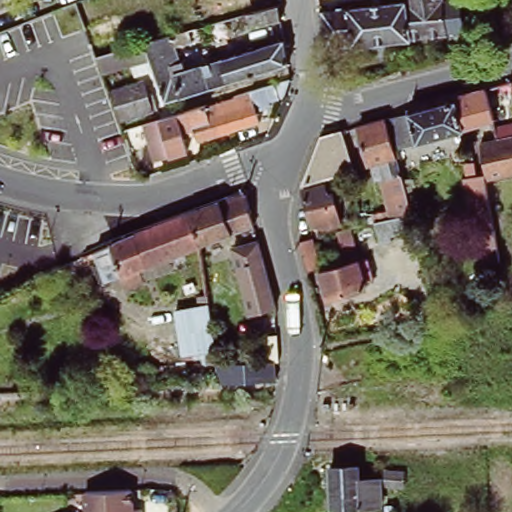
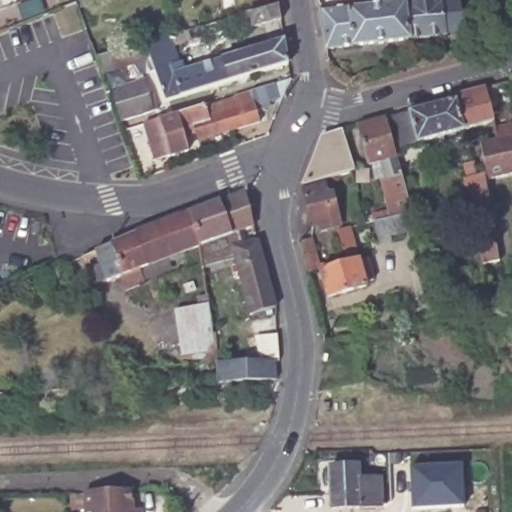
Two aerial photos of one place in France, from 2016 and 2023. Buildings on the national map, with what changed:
unchanged [(442,40),(322,54),(315,14),(346,11),(347,13),(400,7),(399,0),(436,0),(442,40)]
unchanged [(287,20),(256,28),(252,13),(283,4),(287,20)]
unchanged [(144,64),(149,62),(142,43),(195,27),(198,36),(180,41),(183,54),(187,52),(188,59),(192,57),(195,67),(285,40),(288,64),(164,102),(152,70),(147,72),(144,64)]
unchanged [(152,109),(122,119),(112,89),(142,80),(152,109)]
unchanged [(452,96),(485,87),(493,122),(462,131),(453,99),(452,96)]
unchanged [(217,107),(217,105),(267,90),(272,103),(250,110),(255,127),(225,136),(217,107)]
unchanged [(462,131),(397,149),(390,117),(453,99),(462,131)]
unchanged [(195,145),(190,132),(179,136),(182,147),(148,159),(138,129),(197,111),(198,114),(217,107),(225,136),(195,145)]
unchanged [(395,195),(385,197),(380,177),(382,177),(377,161),(368,163),(357,126),(384,119),(398,169),(410,208),(415,229),(390,235),(392,242),(379,245),(372,219),(374,219),(372,212),(391,207),(392,213),(400,211),(395,195)]
unchanged [(484,177),(483,172),(477,140),(491,137),(488,126),(512,122),(512,171),(484,177)]
unchanged [(304,183),(322,136),(342,130),(353,170),(350,171),(304,183)]
unchanged [(487,263),(479,231),(472,232),(460,179),(464,178),(461,165),(470,162),(473,176),(482,174),(500,260),(487,263)]
demolished [(353,181),(368,176),(376,206),(361,210),(353,181)]
unchanged [(323,184),(327,195),(332,193),(340,222),(336,226),(324,230),(322,223),(313,226),(302,191),(323,184)]
unchanged [(240,193),(250,226),(195,246),(185,214),(240,193)]
unchanged [(195,246),(120,274),(110,244),(185,214),(195,246)]
unchanged [(362,215),(369,214),(370,220),(364,222),(362,215)]
unchanged [(338,229),(349,226),(366,287),(327,298),(318,267),(347,260),(338,229)]
unchanged [(299,242),(310,239),(318,267),(307,271),(299,242)]
unchanged [(282,305),(258,311),(241,247),(264,240),(282,305)]
unchanged [(215,360),(182,362),(173,310),(209,306),(215,360)]
unchanged [(222,381),(221,362),(252,362),(265,362),(264,336),(283,336),(284,362),(278,362),(278,378),(222,381)]
unchanged [(359,507),(332,507),(331,468),(358,467),(359,507)]
new [(462,467),(464,507),(413,510),(411,468),(462,467)]
unchanged [(383,482),(384,507),(359,507),(358,477),(383,476),(383,482)]
unchanged [(132,486),(132,504),(141,503),(141,512),(87,512),(85,487),(132,486)]

